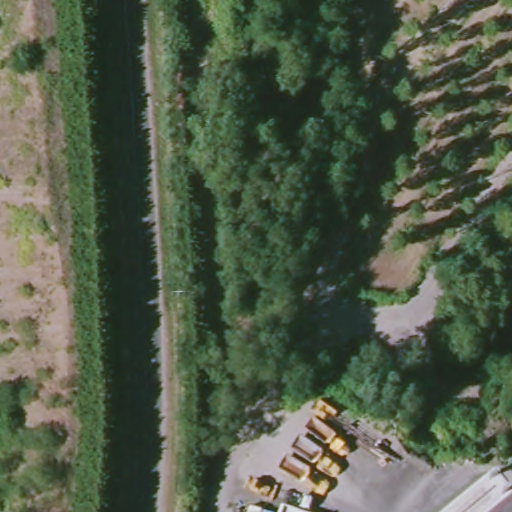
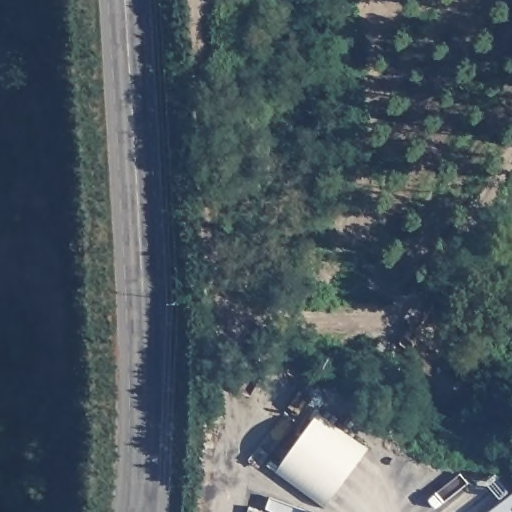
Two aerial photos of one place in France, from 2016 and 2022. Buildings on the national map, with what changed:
new [(275,473),(318,414),(367,447),(325,509),(275,473)]

